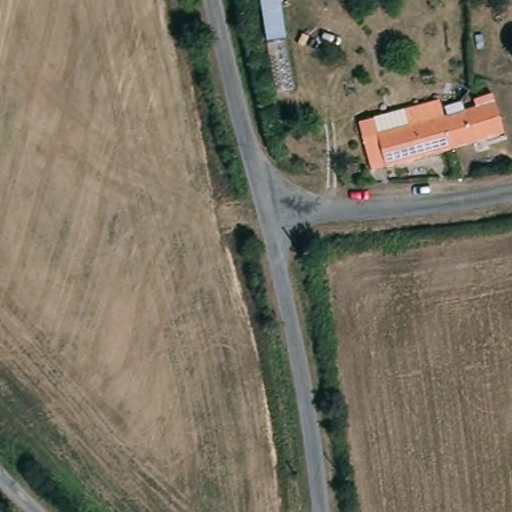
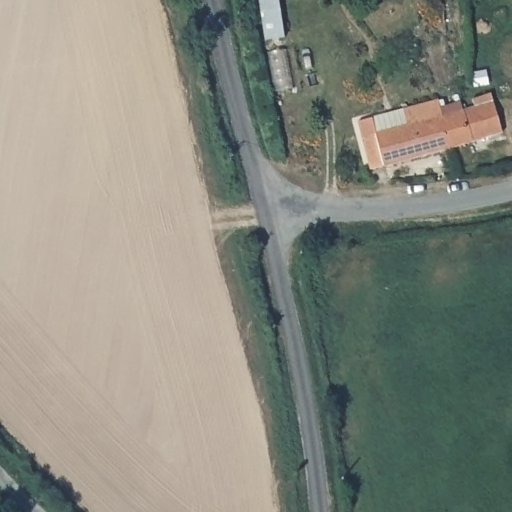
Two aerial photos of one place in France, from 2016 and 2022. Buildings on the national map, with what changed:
unchanged [(473,105),(470,96),(487,91),(491,100),(497,116),(500,124),(502,136),(452,151),(440,113),(457,109),(461,107),(473,105)]
unchanged [(452,151),(367,176),(353,130),(403,116),(438,106),(440,113),(452,151)]

